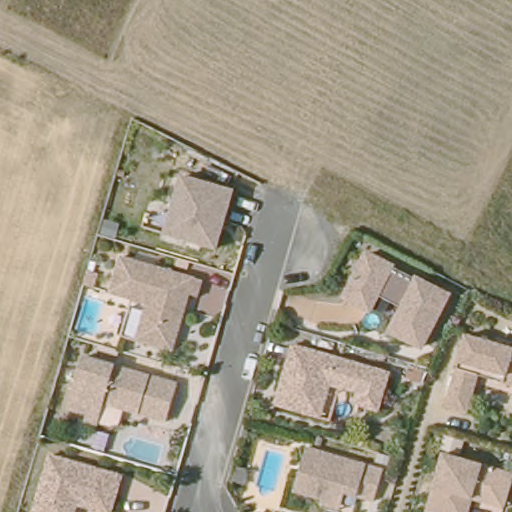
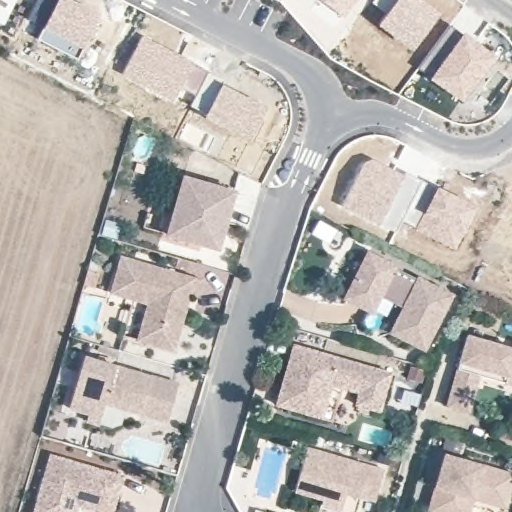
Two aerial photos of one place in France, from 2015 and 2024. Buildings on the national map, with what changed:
new [(0,23),(0,0),(15,0),(2,24),(0,23)]
new [(81,48),(76,59),(37,39),(43,27),(27,19),(37,0),(71,0),(99,14),(81,48)]
new [(319,0),(356,0),(343,18),(319,0)]
new [(394,0),(421,0),(440,15),(412,51),(376,24),(384,13),(394,0)]
new [(462,30),(497,55),(463,103),(427,78),(462,30)]
new [(193,61),(191,63),(206,71),(222,80),(220,83),(213,95),(205,110),(203,114),(189,105),(195,94),(181,87),(172,103),(121,75),(141,35),(193,61)]
new [(205,110),(213,95),(220,83),(266,107),(247,141),(203,115),(205,110)]
new [(371,158),(403,174),(405,172),(437,187),(474,206),(464,233),(454,250),(414,229),(414,227),(400,220),(394,231),(379,223),(379,225),(341,205),(363,162),(371,158)]
unchanged [(169,225),(186,169),(236,183),(219,240),(169,225)]
unchanged [(123,249),(204,273),(200,289),(191,287),(186,303),(175,341),(138,330),(148,295),(113,284),(123,249)]
unchanged [(452,291),(426,343),(395,327),(407,304),(381,292),(374,307),(349,294),(371,250),(452,291)]
unchanged [(477,375),(468,406),(448,399),(469,330),(495,339),(512,343),(512,385),(477,375)]
unchanged [(294,343),(392,369),(381,408),(358,401),(361,389),(341,384),(332,382),(328,397),(324,414),(278,401),(281,391),(294,343)]
unchanged [(166,414),(91,394),(88,408),(67,402),(81,351),(176,377),(166,414)]
unchanged [(296,488),(309,445),(387,467),(377,499),(361,494),(349,491),(346,502),(326,497),(296,488)]
unchanged [(51,449),(123,470),(111,509),(79,499),(76,512),(33,512),(51,449)]
unchanged [(512,468),(512,478),(503,509),(474,501),(470,512),(452,512),(429,505),(446,451),(512,468)]

